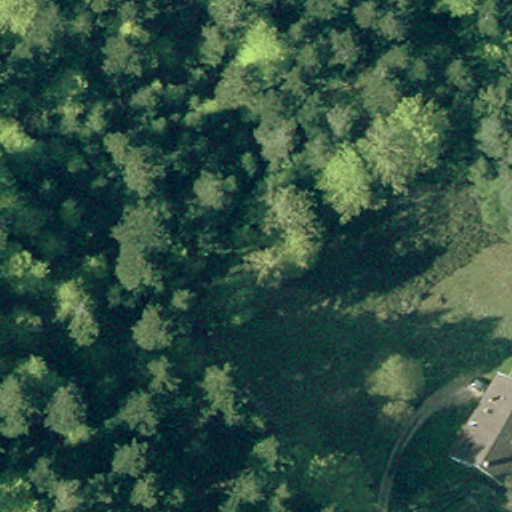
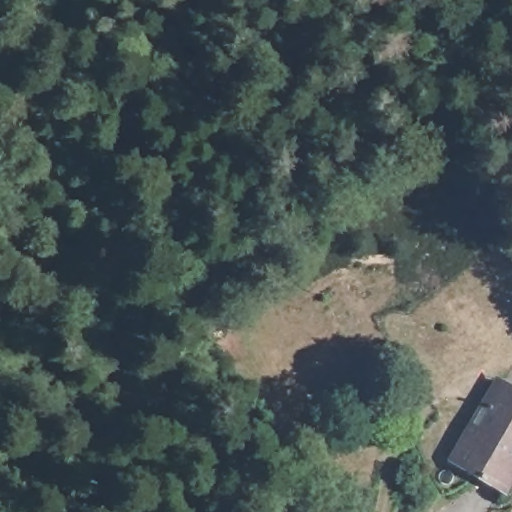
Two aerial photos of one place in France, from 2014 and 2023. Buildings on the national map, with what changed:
unchanged [(498,380),(512,389),(512,460),(495,489),(443,455),(465,420),(472,425),(498,380)]

